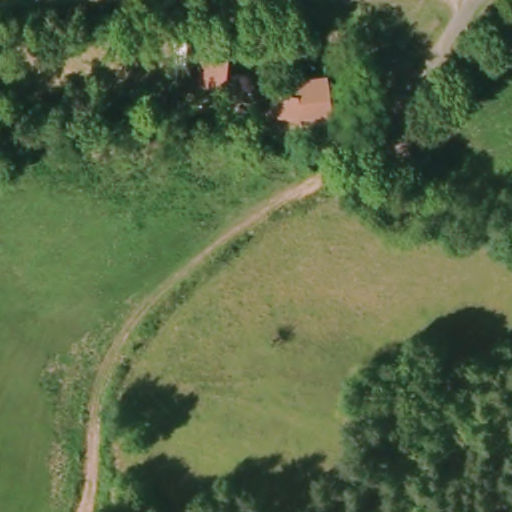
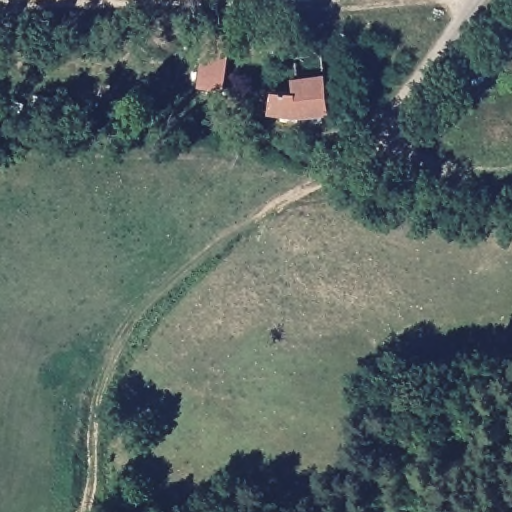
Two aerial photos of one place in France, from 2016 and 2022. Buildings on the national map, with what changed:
unchanged [(271,113),(273,90),(290,93),(290,82),(295,80),(293,59),(325,54),(335,111),(297,118),(271,113)]

